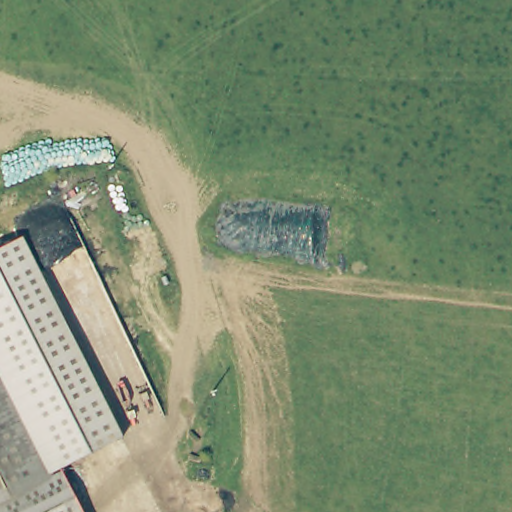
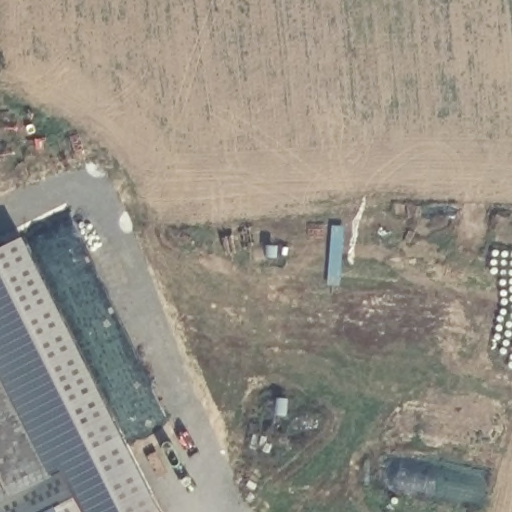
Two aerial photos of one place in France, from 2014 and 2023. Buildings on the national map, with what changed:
unchanged [(59,469),(41,477),(36,468),(0,395),(0,244),(19,235),(121,438),(63,467),(59,469)]
unchanged [(0,512),(0,395),(41,477),(57,512),(0,512)]
new [(121,438),(161,512),(85,512),(63,467),(121,438)]
unchanged [(63,467),(85,512),(57,512),(41,477),(63,467)]

